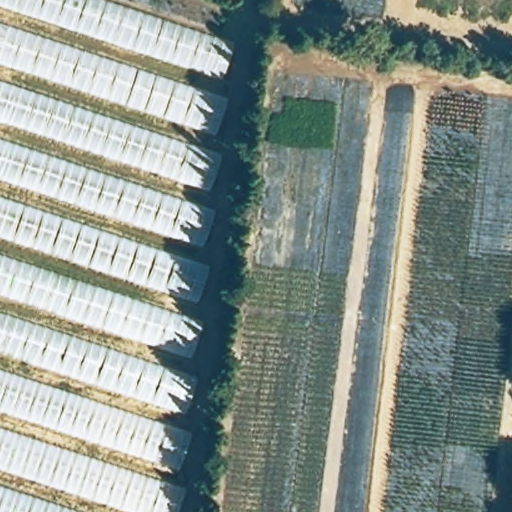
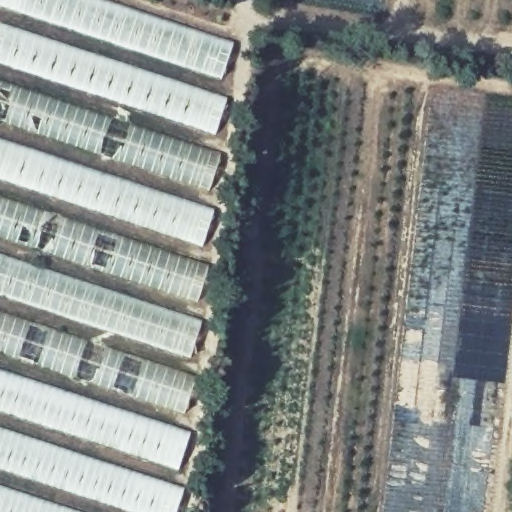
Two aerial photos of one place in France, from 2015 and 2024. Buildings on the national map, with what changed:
unchanged [(0,63),(0,25),(5,9),(0,6),(0,0),(90,0),(229,47),(215,97),(223,106),(208,157),(216,161),(202,207),(211,212),(193,267),(207,275),(181,512),(0,512),(0,67),(1,64),(0,63)]

